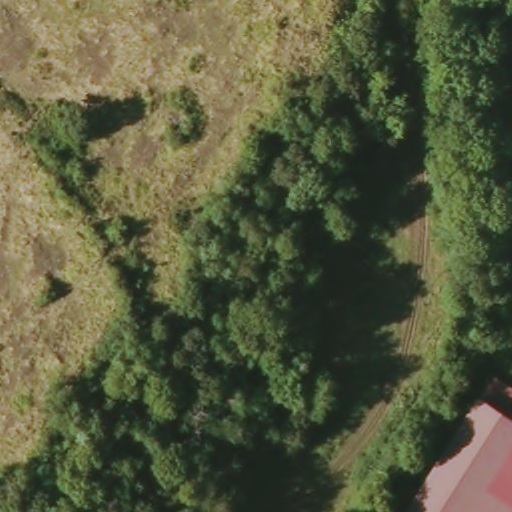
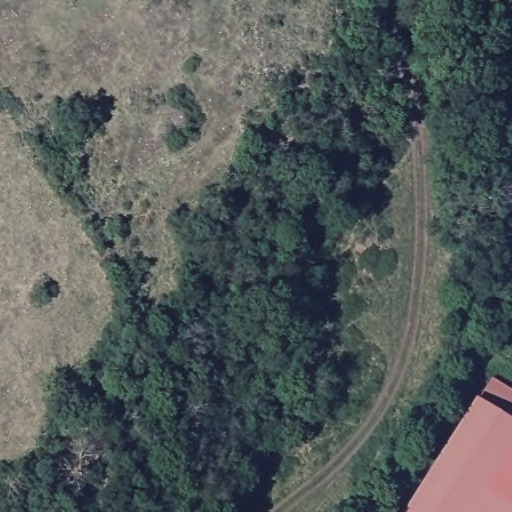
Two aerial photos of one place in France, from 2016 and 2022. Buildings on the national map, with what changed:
unchanged [(483,405),(499,386),(512,393),(512,512),(414,512),(483,405)]

